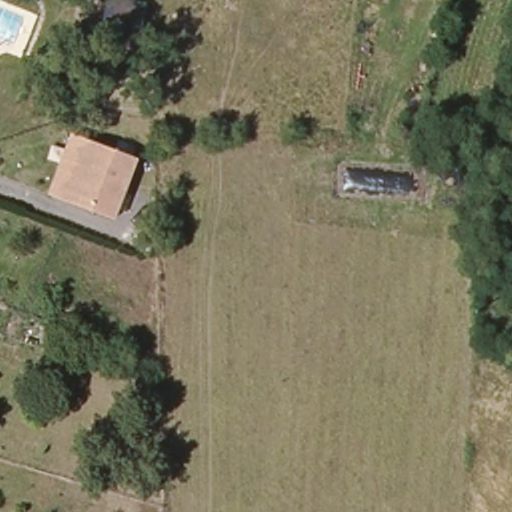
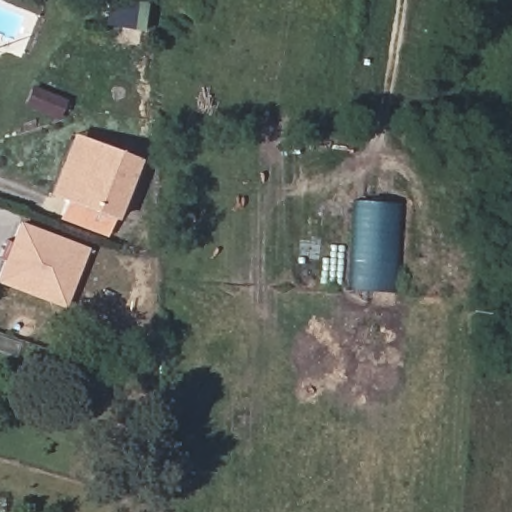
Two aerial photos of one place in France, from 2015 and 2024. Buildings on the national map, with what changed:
unchanged [(140,161),(115,221),(50,194),(70,134),(140,161)]
new [(354,202),(395,202),(391,292),(351,288),(354,202)]
new [(64,304),(47,298),(54,282),(31,273),(25,290),(0,281),(0,276),(19,223),(85,247),(64,304)]

